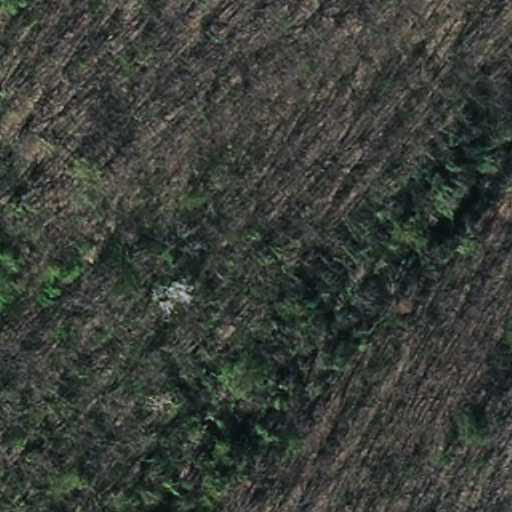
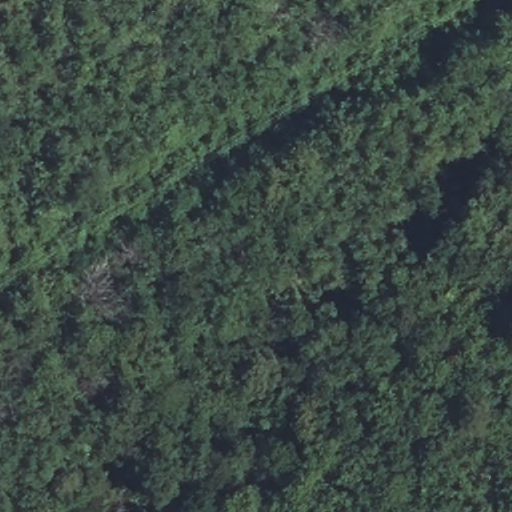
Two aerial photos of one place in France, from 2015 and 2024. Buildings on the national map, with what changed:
[]

